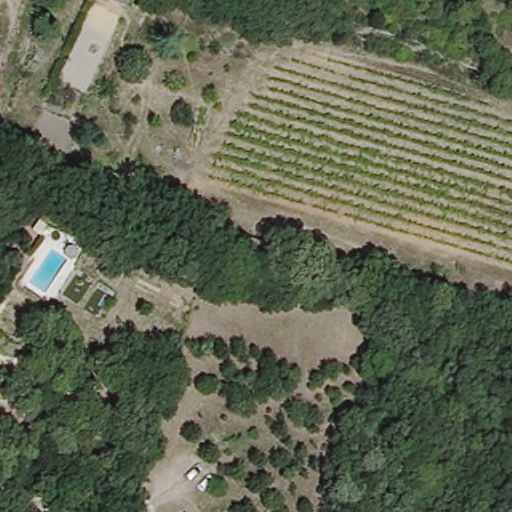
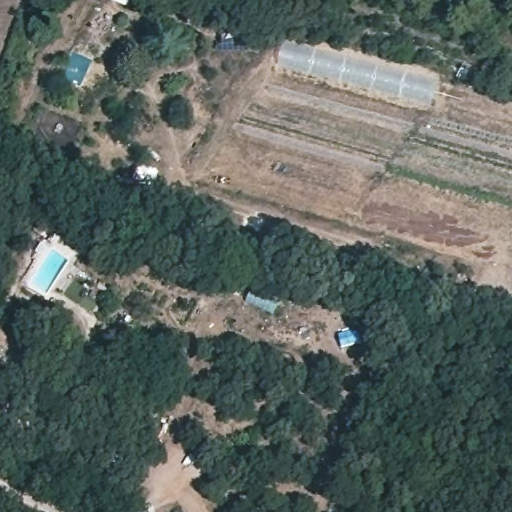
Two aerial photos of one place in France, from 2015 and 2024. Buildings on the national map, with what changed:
unchanged [(113,0),(130,0),(128,6),(113,0)]
new [(283,38),(400,66),(438,76),(431,106),(363,89),(276,64),(283,38)]

